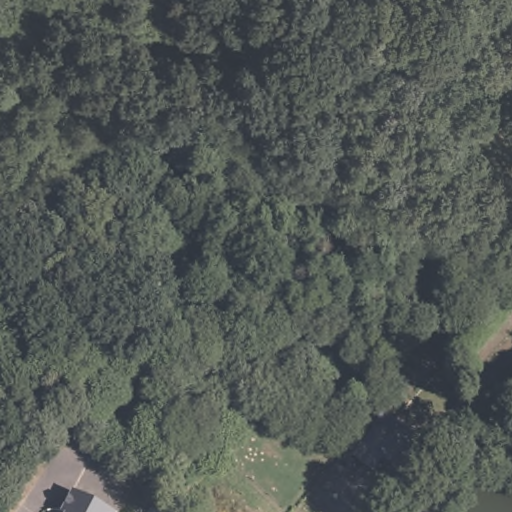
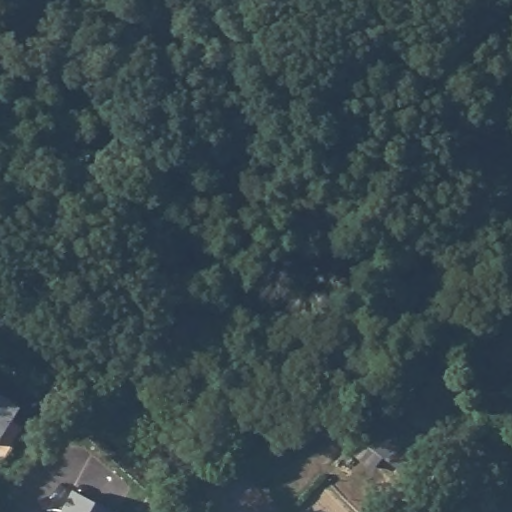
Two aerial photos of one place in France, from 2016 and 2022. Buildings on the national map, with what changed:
new [(0,437),(0,395),(19,407),(0,437)]
unchanged [(405,424),(406,422),(422,434),(421,436),(428,441),(417,458),(405,448),(395,461),(383,452),(370,442),(382,455),(370,469),(354,454),(371,435),(389,412),(392,415),(405,424)]
unchanged [(111,512),(64,512),(75,493),(111,512)]

